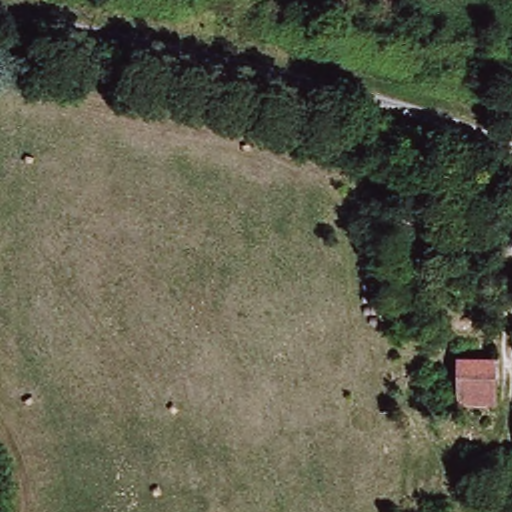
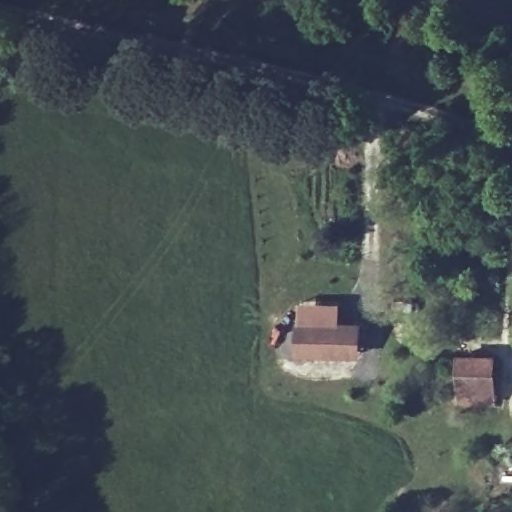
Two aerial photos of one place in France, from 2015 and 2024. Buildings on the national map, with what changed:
new [(363,323),(362,358),(295,356),(296,321),(363,323)]
unchanged [(493,402),(455,402),(454,354),(496,352),(493,402)]

